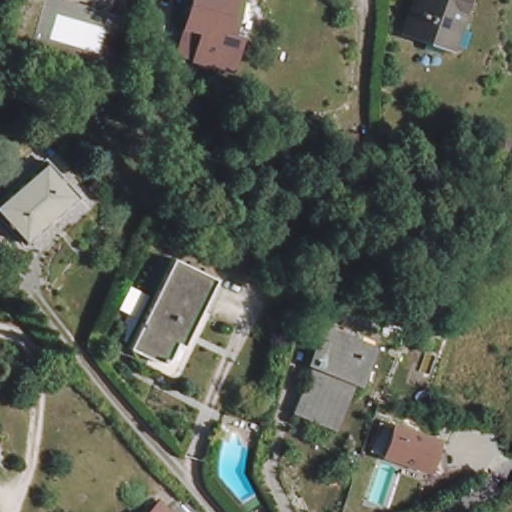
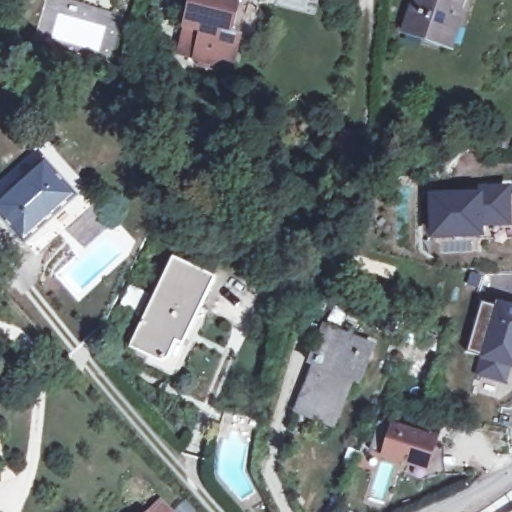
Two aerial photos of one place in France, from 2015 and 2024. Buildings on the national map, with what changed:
unchanged [(200,0),(245,0),(235,40),(244,43),(237,72),(202,63),(185,57),(192,30),(200,0)]
unchanged [(453,23),(460,25),(452,45),(405,30),(415,0),(461,0),(453,23)]
unchanged [(355,136),(352,161),(334,160),(335,135),(355,136)]
unchanged [(0,215),(0,201),(45,161),(76,196),(25,242),(0,215)]
new [(480,191),(481,184),(511,186),(512,226),(485,227),(484,237),(430,237),(430,193),(480,191)]
unchanged [(169,364),(126,344),(169,254),(210,273),(169,364)]
new [(510,364),(505,381),(479,374),(484,357),(467,352),(482,301),(499,306),(500,304),(512,308),(512,365),(510,364)]
unchanged [(352,382),(334,429),(299,415),(317,368),(312,366),(327,330),(359,343),(376,350),(370,364),(362,386),(352,382)]
unchanged [(430,473),(379,460),(391,423),(440,437),(430,473)]
unchanged [(169,512),(154,512),(161,504),(169,512)]
new [(509,512),(512,510),(512,512),(509,512)]

